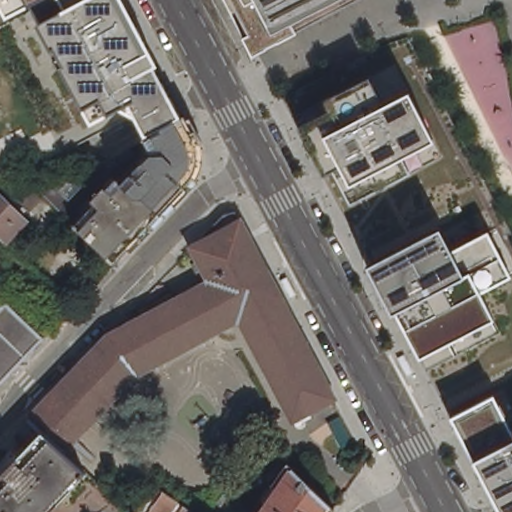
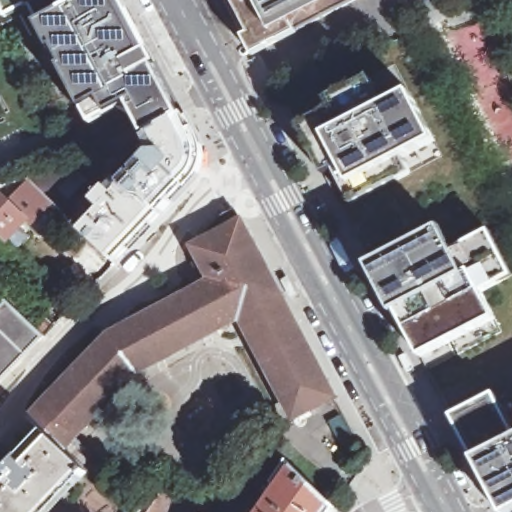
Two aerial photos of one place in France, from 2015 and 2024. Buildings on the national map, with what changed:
unchanged [(0,0),(126,0),(185,113),(170,121),(160,126),(155,130),(148,133),(113,114),(92,124),(87,108),(45,24),(32,5),(9,16),(0,21),(0,0)]
unchanged [(298,31),(254,55),(251,56),(223,0),(354,0),(298,31)]
unchanged [(435,142),(395,162),(405,172),(349,198),(335,165),(326,170),(306,125),(339,111),(334,97),(371,80),(383,105),(412,93),(435,142)]
unchanged [(165,207),(165,209),(164,208),(154,199),(147,194),(141,187),(131,179),(127,175),(125,174),(145,152),(150,155),(157,147),(148,133),(155,130),(160,126),(170,121),(185,113),(191,110),(192,113),(199,125),(200,127),(203,134),(205,135),(206,139),(207,142),(207,146),(208,150),(208,154),(207,156),(207,160),(205,164),(205,165),(203,169),(201,172),(199,175),(196,179),(167,209),(165,207)]
unchanged [(117,149),(122,155),(111,160),(125,174),(127,175),(131,179),(141,187),(147,194),(154,199),(164,208),(165,209),(165,207),(167,209),(157,220),(156,221),(155,221),(146,231),(142,235),(140,237),(137,241),(134,244),(125,254),(124,255),(120,258),(120,257),(119,257),(120,256),(111,249),(80,219),(80,218),(64,203),(48,187),(33,173),(33,172),(43,170),(76,162),(87,160),(88,160),(88,159),(88,160),(90,159),(96,157),(101,156),(105,156),(117,149)]
unchanged [(2,183),(5,188),(14,196),(20,190),(45,211),(22,235),(13,226),(10,224),(0,214),(0,182),(1,182),(2,183)]
unchanged [(53,431),(51,428),(40,418),(41,416),(119,335),(122,333),(136,326),(137,325),(138,326),(145,323),(144,322),(221,281),(220,277),(216,271),(215,270),(212,263),(203,248),(203,247),(203,246),(235,213),(246,210),(252,220),(291,295),(345,397),(343,398),(327,406),(321,410),(305,418),(295,401),(296,400),(293,395),(292,395),(291,393),(292,393),(289,386),(287,387),(266,347),(267,346),(265,340),(263,341),(262,340),(263,339),(260,332),(259,333),(250,317),(247,320),(246,318),(240,322),(240,323),(220,334),(219,333),(212,336),(213,337),(173,359),(172,357),(166,361),(167,362),(147,372),(135,386),(133,385),(128,390),(130,391),(105,418),(103,417),(98,422),(100,423),(85,437),(81,442),(75,448),(74,450),(53,431)]
unchanged [(13,226),(0,240),(0,214),(10,224),(13,226)]
unchanged [(483,292),(496,315),(423,355),(395,313),(370,266),(444,227),(453,244),(485,227),(512,273),(512,280),(483,292)]
unchanged [(75,303),(76,305),(75,307),(66,315),(65,316),(65,315),(48,299),(59,287),(75,303)]
unchanged [(12,305),(18,310),(28,301),(60,330),(60,332),(51,341),(50,342),(49,343),(48,344),(47,345),(46,344),(30,362),(28,365),(27,365),(27,366),(27,367),(26,367),(0,395),(0,320),(10,308),(12,305)]
unchanged [(508,512),(502,512),(475,460),(454,418),(493,396),(512,426),(512,510),(508,512)]
unchanged [(93,475),(90,472),(52,512),(0,512),(0,487),(26,459),(35,450),(42,443),(53,431),(74,450),(97,471),(93,475)]
unchanged [(338,512),(267,512),(271,505),(283,489),(284,487),(278,483),(285,474),(288,470),(294,461),(297,465),(311,478),(326,492),(340,506),(340,507),(341,507),(338,512)]
unchanged [(166,484),(168,485),(166,487),(200,511),(202,512),(143,512),(153,499),(160,491),(166,484)]
unchanged [(218,512),(213,512),(215,510),(218,512)]

